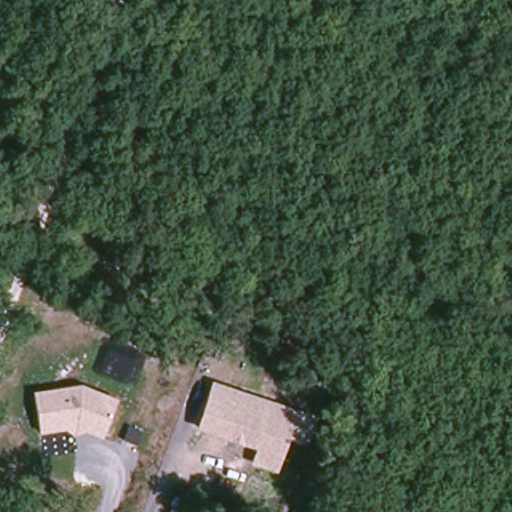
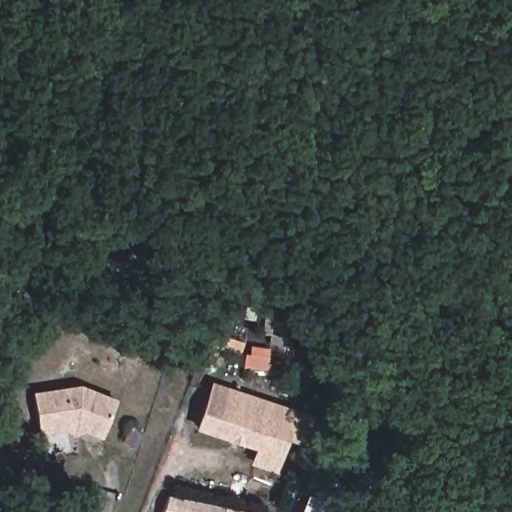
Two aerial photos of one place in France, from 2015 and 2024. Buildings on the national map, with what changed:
unchanged [(178,422),(194,380),(292,417),(282,441),(264,434),(252,466),(232,459),(238,445),(220,438),(210,434),(178,422)]
unchanged [(100,438),(83,431),(72,436),(65,429),(37,434),(31,391),(77,384),(115,399),(100,438)]
new [(250,512),(164,512),(169,495),(250,512)]

